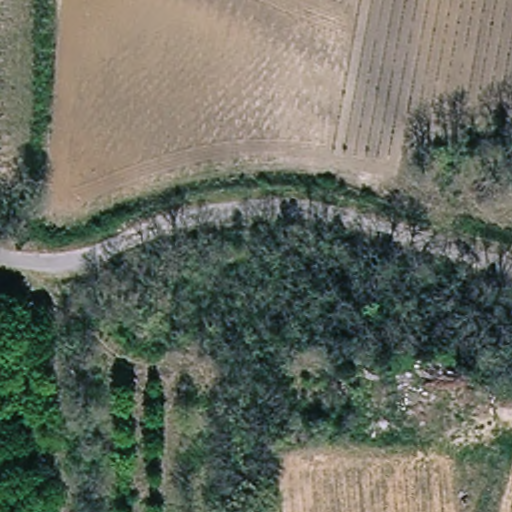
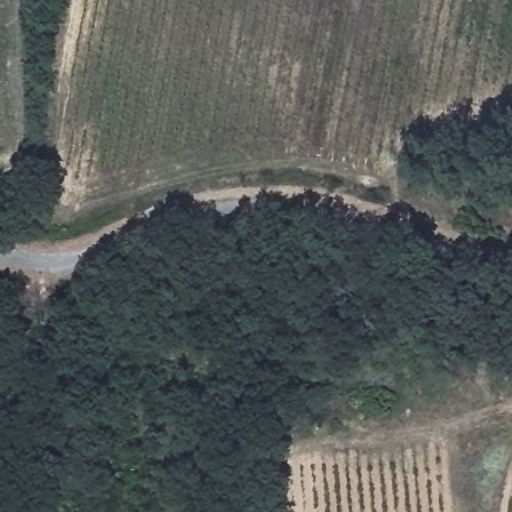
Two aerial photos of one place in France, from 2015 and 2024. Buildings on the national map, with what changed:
[]

